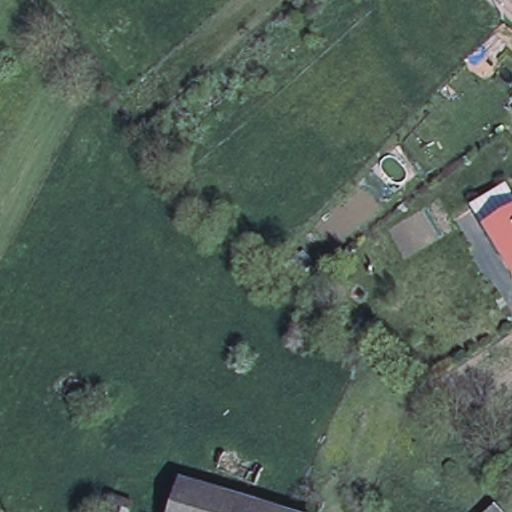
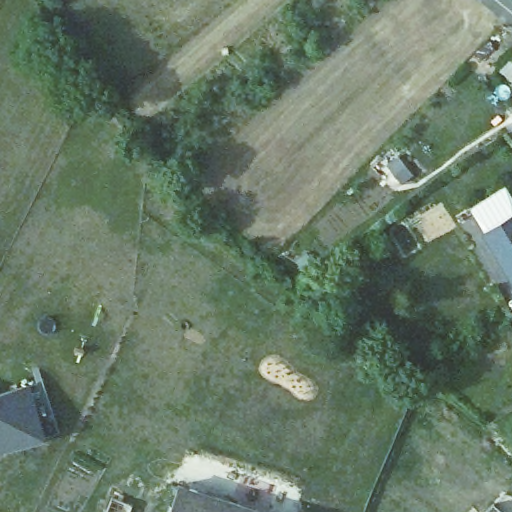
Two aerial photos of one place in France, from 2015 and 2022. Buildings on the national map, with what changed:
unchanged [(470,211),(482,203),(503,188),(512,201),(512,276),(512,275),(470,211)]
new [(0,448),(0,393),(29,385),(47,437),(5,450),(0,448)]
unchanged [(263,470),(256,487),(217,470),(225,453),(263,470)]
unchanged [(169,512),(179,480),(200,487),(227,495),(221,512),(169,512)]
unchanged [(221,512),(227,495),(283,512),(221,512)]
unchanged [(130,512),(108,512),(111,503),(131,509),(130,512)]
unchanged [(488,512),(495,505),(501,512),(488,512)]

